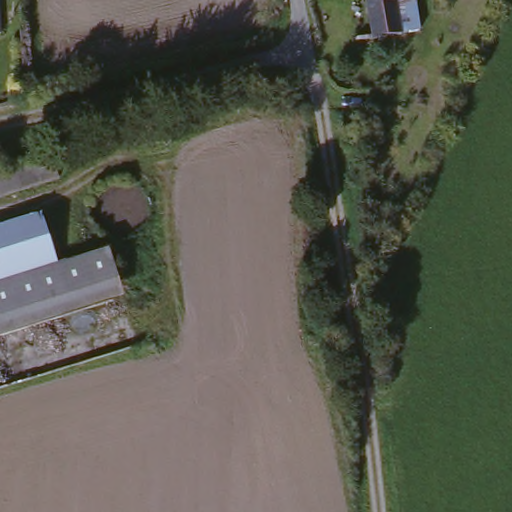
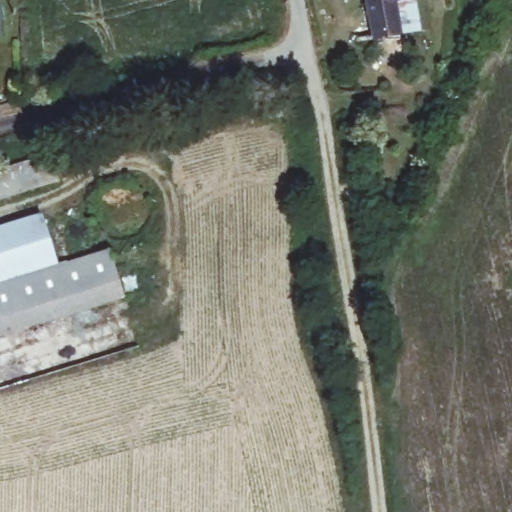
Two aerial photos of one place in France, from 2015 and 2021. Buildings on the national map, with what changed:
unchanged [(393,25),(369,33),(362,0),(388,0),(388,1),(393,0),(408,0),(413,21),(393,25)]
unchanged [(1,32),(0,32),(0,23),(1,32)]
unchanged [(0,197),(0,169),(51,151),(59,176),(0,197)]
unchanged [(0,338),(0,232),(38,218),(56,267),(103,250),(121,299),(0,338)]

